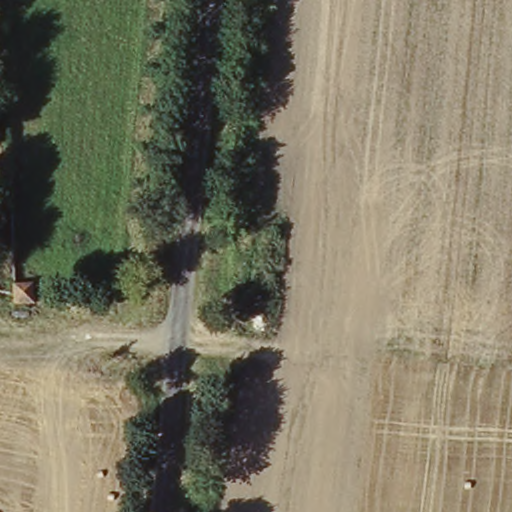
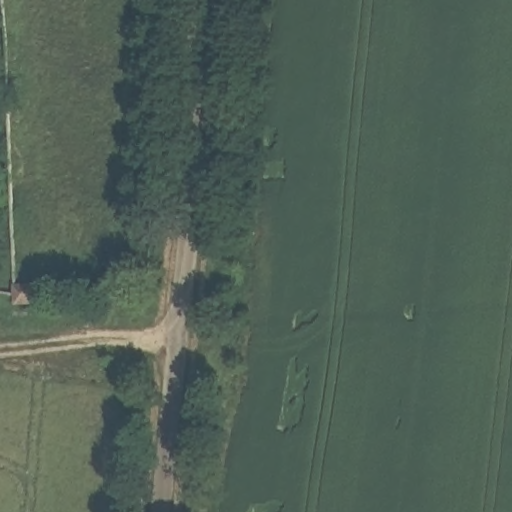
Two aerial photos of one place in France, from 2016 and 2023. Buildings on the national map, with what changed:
unchanged [(19,301),(22,279),(29,280),(49,282),(48,296),(47,305),(19,301)]

